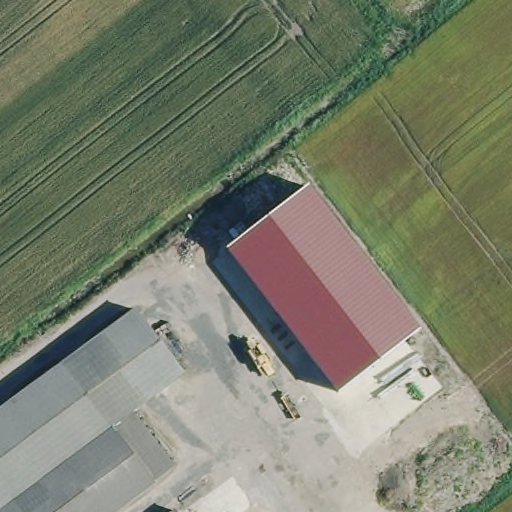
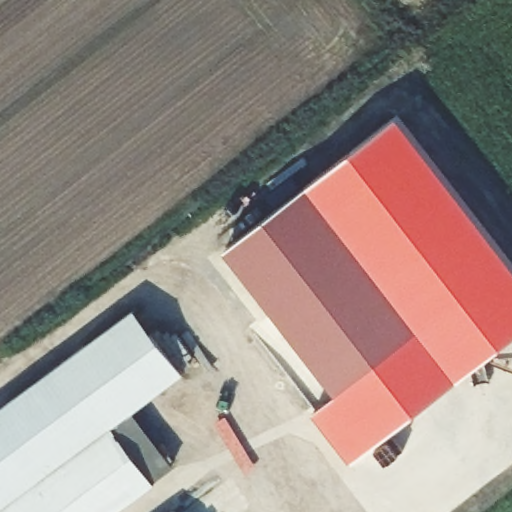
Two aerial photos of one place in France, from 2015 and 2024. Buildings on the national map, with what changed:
new [(415,330),(307,185),(398,116),(512,261),(512,337),(353,459),(312,408),(333,392),(415,330)]
unchanged [(415,330),(333,392),(226,249),(307,185),(415,330)]
unchanged [(137,308),(187,376),(135,416),(117,430),(110,422),(64,361),(137,308)]
unchanged [(110,422),(0,508),(0,410),(64,361),(110,422)]
unchanged [(135,416),(172,463),(152,478),(117,430),(135,416)]
unchanged [(117,430),(152,478),(154,480),(112,512),(0,512),(0,508),(110,422),(117,430)]
unchanged [(175,508),(178,512),(169,512),(175,508)]

